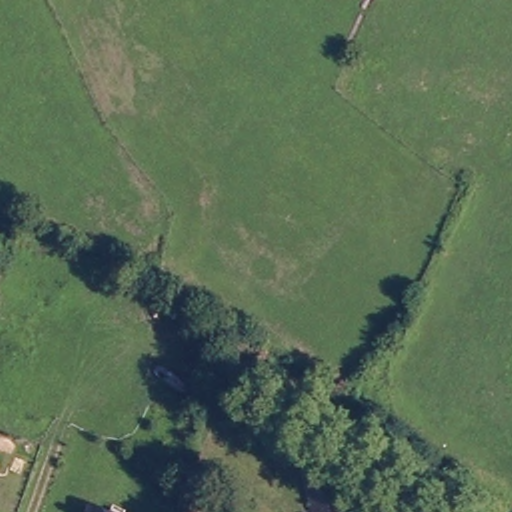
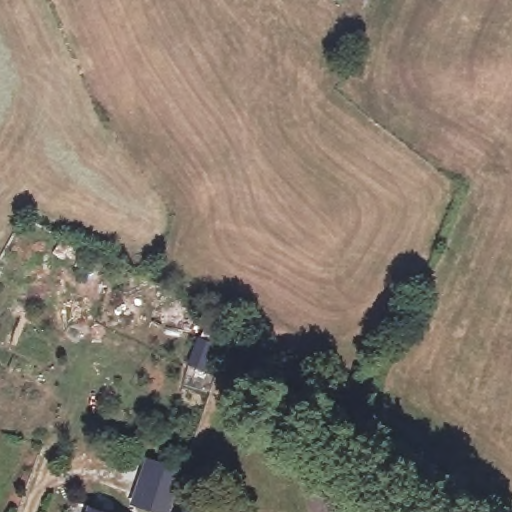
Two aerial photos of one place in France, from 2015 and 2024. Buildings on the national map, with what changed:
unchanged [(325,455),(338,507),(321,512),(309,512),(297,462),(325,455)]
new [(180,473),(168,512),(153,512),(132,505),(146,462),(180,473)]
unchanged [(411,504),(407,512),(373,512),(385,490),(411,504)]
unchanged [(111,512),(87,512),(89,505),(111,512)]

